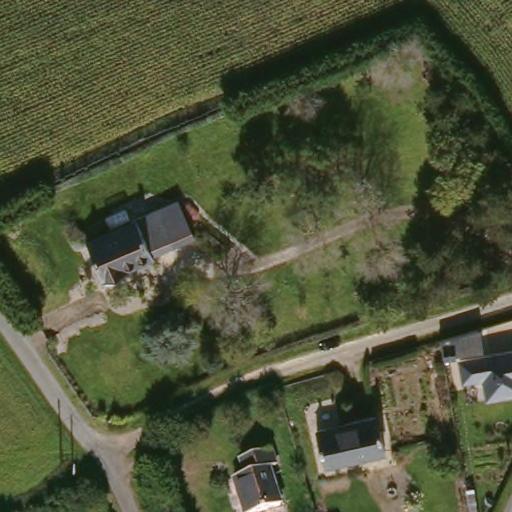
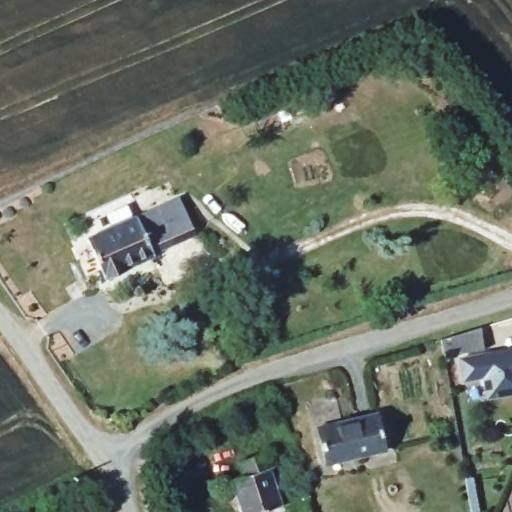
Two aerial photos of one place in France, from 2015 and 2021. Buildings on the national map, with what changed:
unchanged [(192,236),(185,240),(120,268),(122,272),(100,282),(81,240),(107,229),(103,220),(101,215),(123,206),(128,220),(176,200),(192,236)]
unchanged [(479,345),(442,352),(440,340),(475,326),(479,345)]
unchanged [(512,396),(485,400),(480,378),(460,381),(455,359),(512,350),(512,396)]
unchanged [(373,413),(383,450),(325,465),(314,428),(373,413)]
unchanged [(260,476),(272,512),(234,512),(225,485),(237,481),(232,466),(263,456),(269,473),(260,476)]

